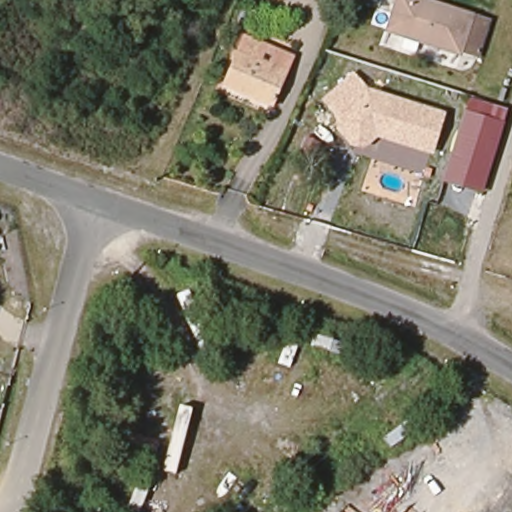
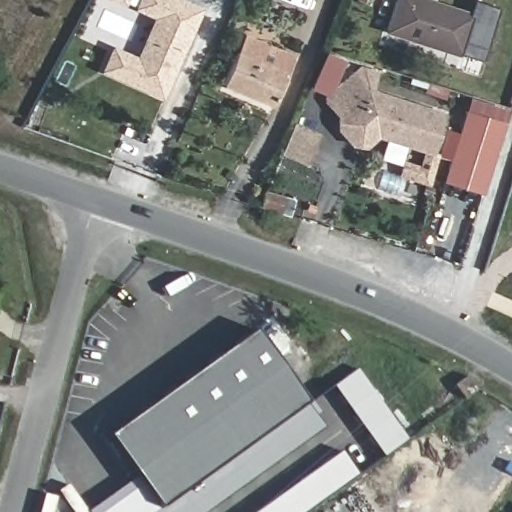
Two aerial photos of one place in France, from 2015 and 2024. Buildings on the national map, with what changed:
new [(137,59),(157,16),(137,7),(140,0),(176,0),(199,10),(161,95),(119,77),(104,70),(114,49),(129,56),(137,59)]
new [(127,0),(125,5),(111,0),(127,0)]
unchanged [(406,0),(420,0),(481,19),(469,59),(395,35),(406,0)]
unchanged [(228,81),(242,46),(291,66),(275,101),(228,81)]
unchanged [(433,151),(375,135),(366,146),(352,145),(338,125),(341,114),(328,99),(354,76),(367,92),(444,113),(433,151)]
unchanged [(442,182),(464,110),(469,96),(507,108),(504,122),(482,193),(442,182)]
new [(250,331),(303,403),(157,511),(104,438),(250,331)]
new [(332,385),(356,368),(406,440),(382,457),(332,385)]
unchanged [(463,395),(454,402),(443,388),(452,381),(463,395)]
new [(205,512),(87,512),(87,511),(133,478),(157,511),(303,403),(322,427),(205,512)]
new [(340,451),(357,475),(305,512),(254,512),(340,451)]

